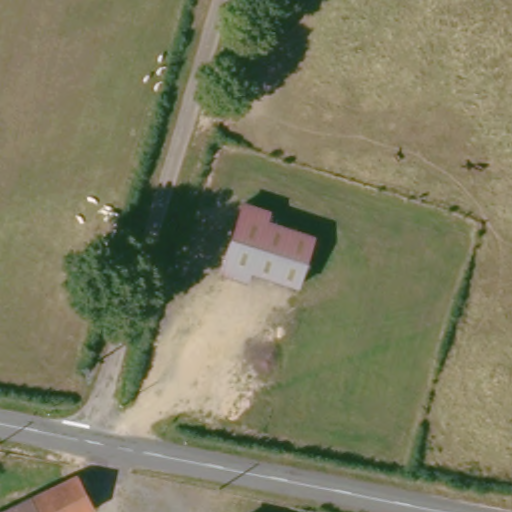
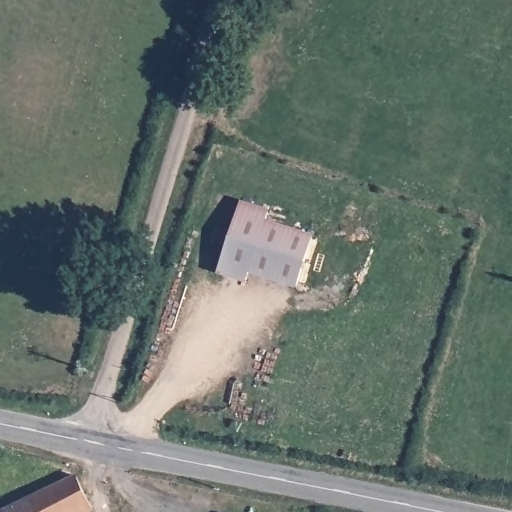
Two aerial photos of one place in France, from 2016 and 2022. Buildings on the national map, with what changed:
unchanged [(266,212),(264,223),(308,234),(294,286),(249,274),(246,284),(216,276),(236,204),(266,212)]
unchanged [(1,512),(56,485),(51,473),(61,468),(69,470),(90,512),(1,512)]

